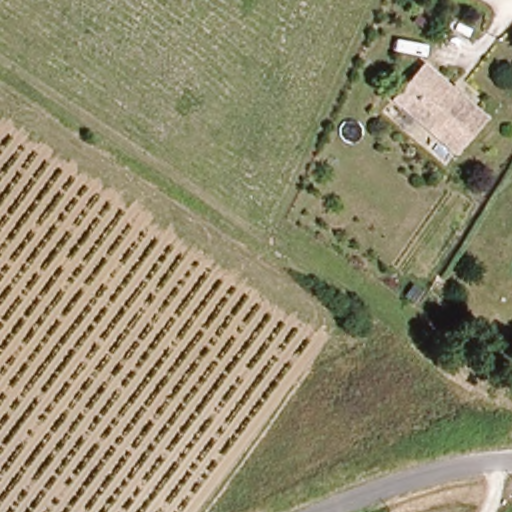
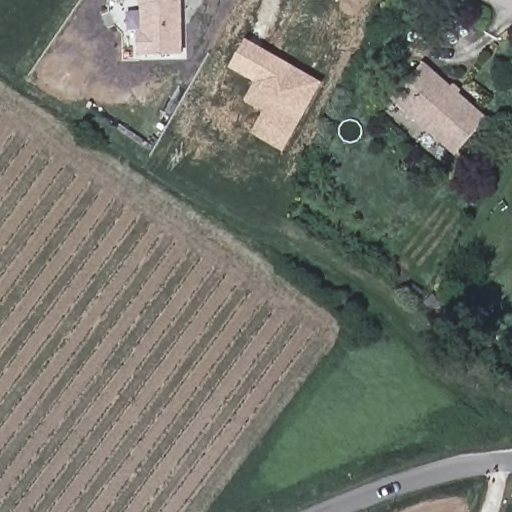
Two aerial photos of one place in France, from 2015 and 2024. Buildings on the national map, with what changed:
new [(136,55),(136,31),(141,31),(140,5),(138,0),(182,0),(182,54),(136,55)]
new [(284,153),(253,133),(264,113),(243,102),(254,82),(229,69),(246,39),(322,84),(284,153)]
unchanged [(476,114),(447,149),(393,103),(423,69),(476,114)]

